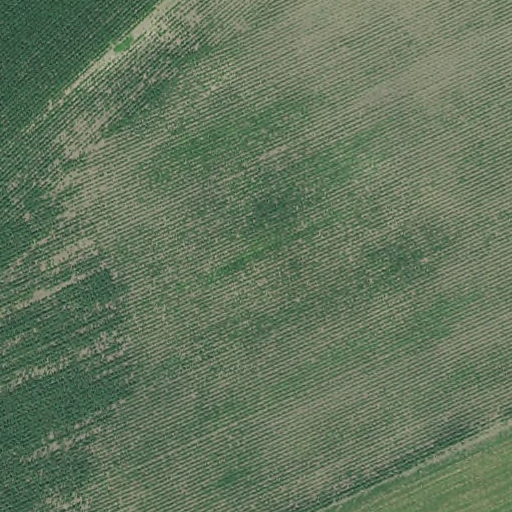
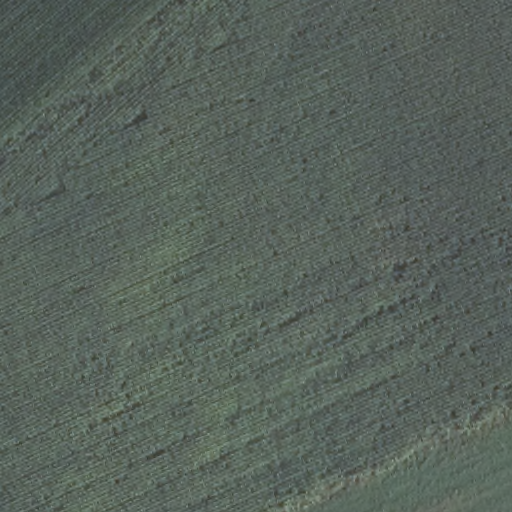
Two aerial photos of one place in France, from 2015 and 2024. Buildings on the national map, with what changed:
[]

